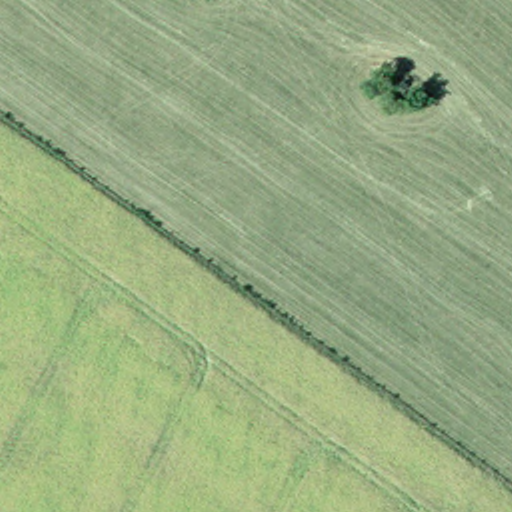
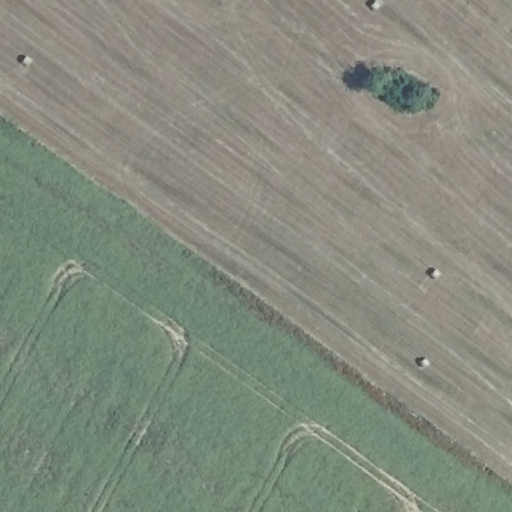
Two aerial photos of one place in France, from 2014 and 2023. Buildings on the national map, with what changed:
[]

